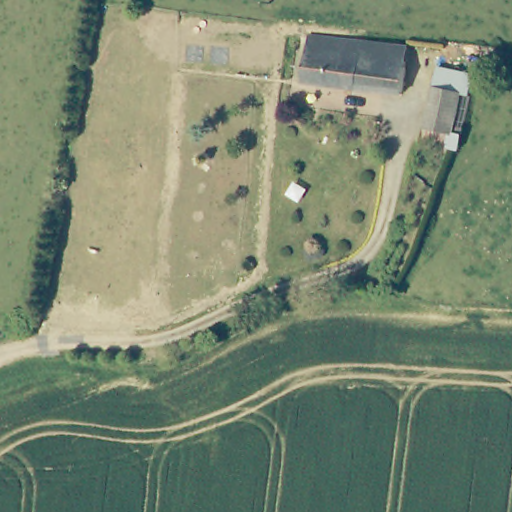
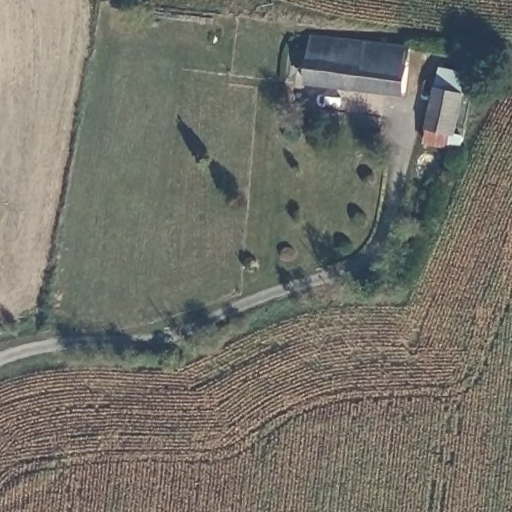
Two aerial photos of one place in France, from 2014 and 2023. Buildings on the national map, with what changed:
unchanged [(310,36),(409,48),(403,94),(304,83),(310,36)]
unchanged [(462,93),(452,134),(462,137),(459,150),(425,144),(438,69),(475,75),(471,94),(462,93)]

